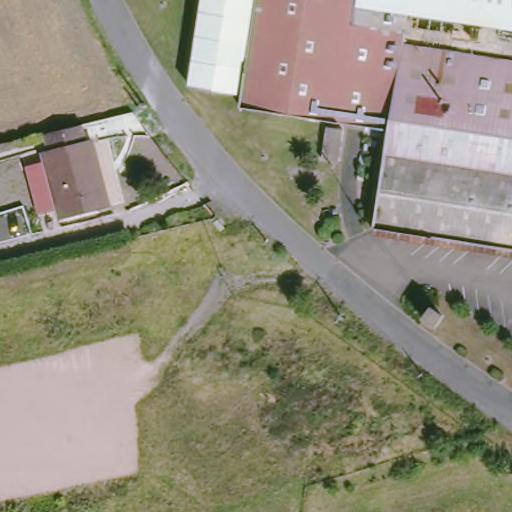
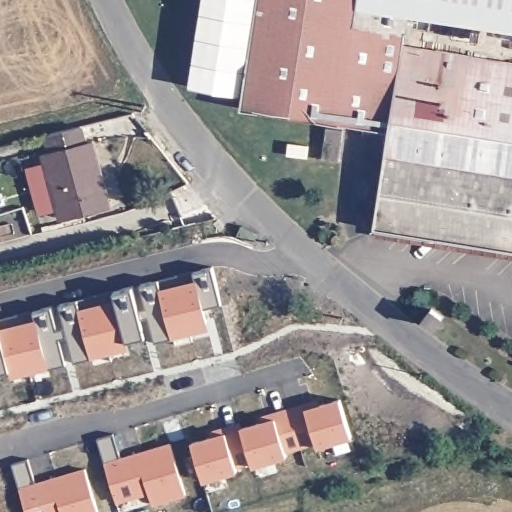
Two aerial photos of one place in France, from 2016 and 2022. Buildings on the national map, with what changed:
unchanged [(242,93),(189,84),(203,0),(409,0),(388,126),(241,106),(242,93)]
unchanged [(372,225),(388,126),(409,0),(512,0),(512,249),(372,225)]
unchanged [(106,205),(56,217),(40,153),(47,151),(44,129),(79,120),(85,143),(92,141),(106,205)]
unchanged [(342,126),(339,156),(322,155),(326,124),(342,126)]
new [(155,346),(139,286),(157,282),(158,291),(194,281),(192,274),(211,269),(220,307),(202,310),(209,334),(155,346)]
new [(141,341),(126,344),(128,353),(72,363),(57,307),(77,304),(77,310),(112,301),(111,296),(127,291),(141,341)]
new [(5,373),(0,375),(0,332),(32,324),(31,316),(50,310),(63,366),(9,380),(5,373)]
new [(317,453),(314,446),(285,455),(287,462),(252,472),(250,466),(235,470),(236,476),(202,487),(189,445),(212,440),(211,432),(240,424),(242,431),(262,425),(260,418),(315,401),(317,408),(337,403),(349,441),(317,453)]
new [(186,499),(152,511),(147,496),(117,509),(97,442),(111,438),(119,458),(169,446),(186,499)]
new [(95,512),(25,512),(11,467),(28,462),(33,483),(84,470),(95,512)]

